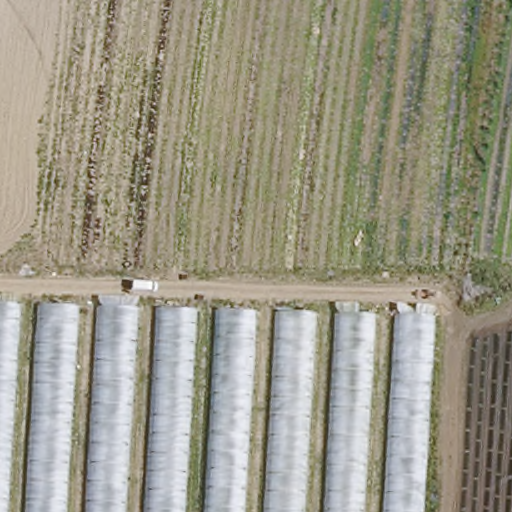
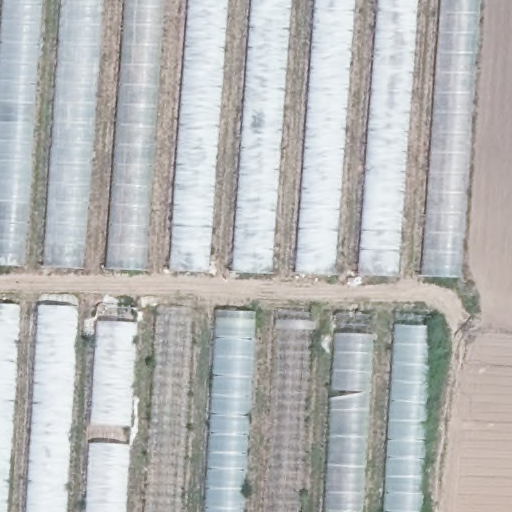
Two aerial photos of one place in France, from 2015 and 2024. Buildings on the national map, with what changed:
new [(0,266),(0,49),(4,0),(40,0),(22,268),(0,266)]
new [(44,267),(64,0),(100,0),(81,269),(44,267)]
new [(107,269),(127,0),(165,0),(146,271),(107,269)]
new [(170,270),(189,0),(226,0),(206,272),(170,270)]
new [(235,271),(253,0),(291,0),(271,273),(235,271)]
new [(297,273),(317,0),(354,0),(335,275),(297,273)]
new [(360,276),(379,0),(417,0),(398,277),(360,276)]
new [(422,275),(442,0),(482,0),(463,277),(422,275)]
unchanged [(429,316),(419,512),(0,512),(0,303),(429,316)]

